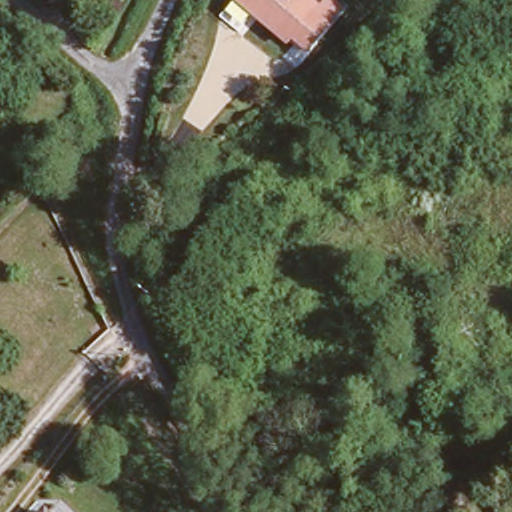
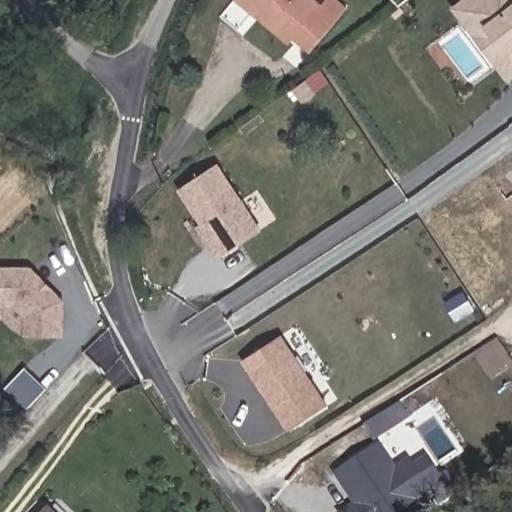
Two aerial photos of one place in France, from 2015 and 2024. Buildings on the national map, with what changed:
unchanged [(239,0),(346,0),(348,2),(304,47),(239,0)]
new [(456,15),(474,0),(512,0),(512,82),(510,83),(471,33),(456,15)]
new [(260,232),(220,260),(211,246),(215,244),(180,194),(217,169),(260,232)]
new [(64,337),(24,335),(24,317),(14,307),(0,307),(0,266),(31,267),(64,302),(64,337)]
new [(326,404),(288,428),(242,358),(279,333),(326,404)]
new [(430,483),(434,490),(403,512),(350,512),(361,505),(355,496),(358,493),(352,485),(348,487),(340,475),(383,446),(399,469),(413,459),(418,466),(431,457),(443,475),(430,483)]
unchanged [(54,507),(59,512),(50,512),(54,507)]

